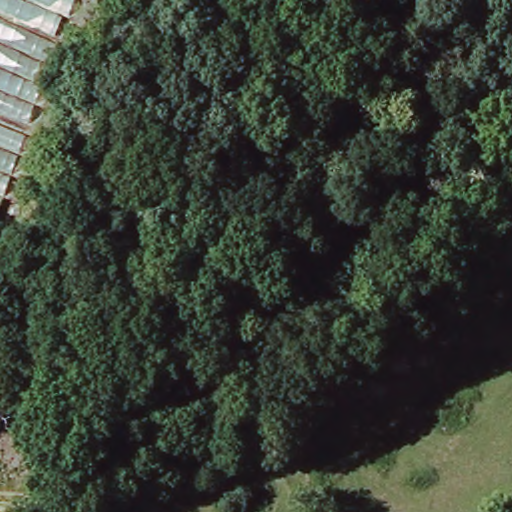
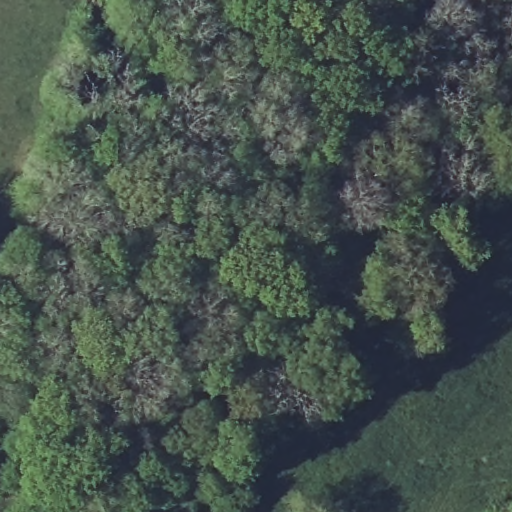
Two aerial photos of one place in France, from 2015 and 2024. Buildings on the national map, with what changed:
demolished [(0,0),(79,0),(0,215),(0,0)]

